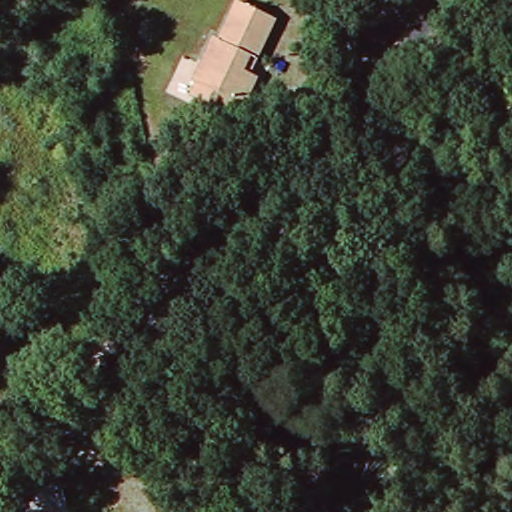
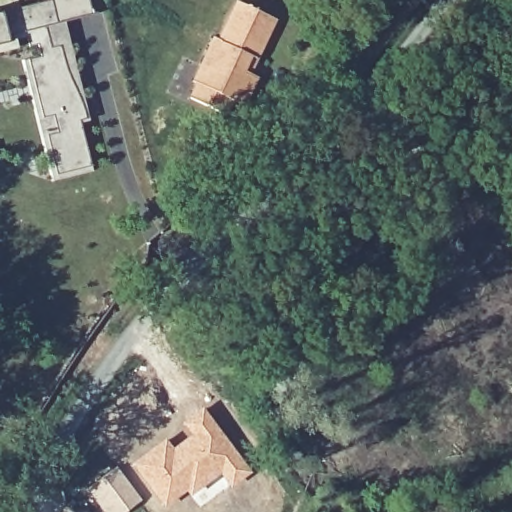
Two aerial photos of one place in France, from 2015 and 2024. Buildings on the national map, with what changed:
new [(40,57),(37,43),(27,45),(26,37),(13,39),(15,48),(0,51),(0,13),(51,1),(51,0),(94,0),(96,14),(65,21),(90,121),(80,124),(92,171),(53,181),(22,61),(40,57)]
unchanged [(201,62),(214,36),(223,40),(239,4),(276,20),(254,72),(260,76),(245,105),(235,100),(230,111),(191,96),(195,85),(191,81),(201,62)]
new [(166,437),(172,446),(187,435),(179,423),(202,405),(250,473),(229,488),(225,483),(200,508),(186,492),(163,508),(129,463),(166,437)]
new [(140,500),(124,512),(106,512),(88,488),(116,467),(140,500)]

